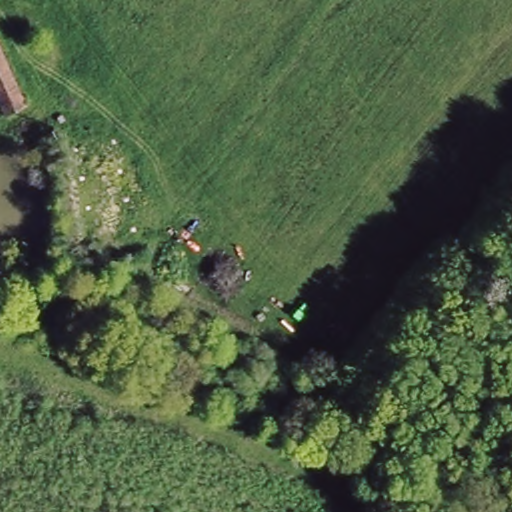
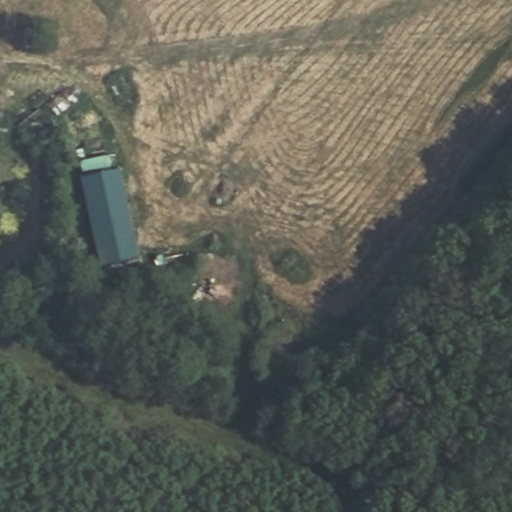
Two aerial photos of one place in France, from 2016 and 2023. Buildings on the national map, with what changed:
demolished [(23,104),(21,105),(6,112),(0,99),(0,51),(23,104)]
new [(101,267),(82,180),(84,179),(80,162),(111,155),(113,171),(121,169),(140,258),(101,267)]

